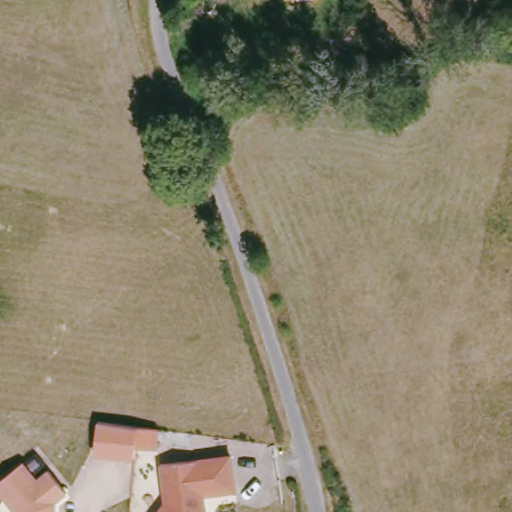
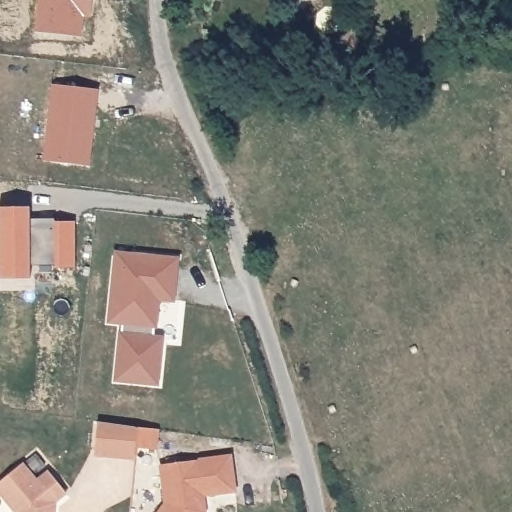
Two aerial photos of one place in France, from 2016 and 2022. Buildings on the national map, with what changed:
new [(91,17),(83,16),(80,37),(35,31),(39,0),(92,0),(91,17)]
unchanged [(277,100),(274,85),(299,82),(301,97),(277,100)]
new [(53,84),(98,89),(89,166),(44,161),(53,84)]
new [(28,226),(51,226),(51,222),(74,222),(74,268),(52,268),(52,260),(29,260),(29,268),(29,277),(0,278),(0,210),(28,209),(28,226)]
new [(114,381),(119,333),(124,333),(124,324),(107,322),(115,251),(179,258),(175,302),(160,301),(158,328),(154,328),(153,336),(163,337),(158,386),(114,381)]
unchanged [(93,453),(98,421),(138,427),(158,429),(154,450),(136,448),(134,459),(93,453)]
unchanged [(240,492),(208,496),(208,499),(202,500),(204,509),(207,512),(164,512),(171,504),(166,465),(236,456),(240,492)]
unchanged [(58,504),(54,505),(54,512),(21,512),(0,488),(0,486),(26,463),(41,480),(53,471),(71,493),(58,504)]

